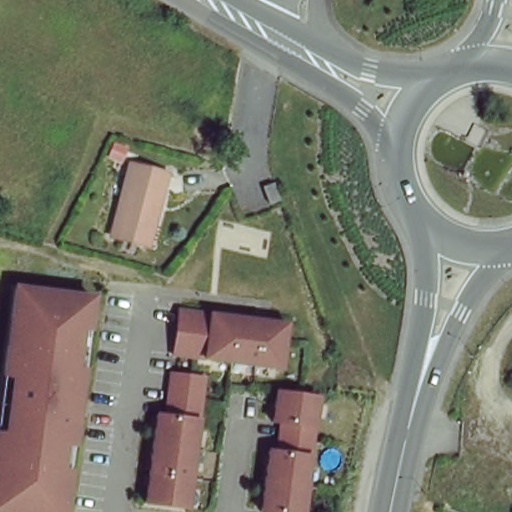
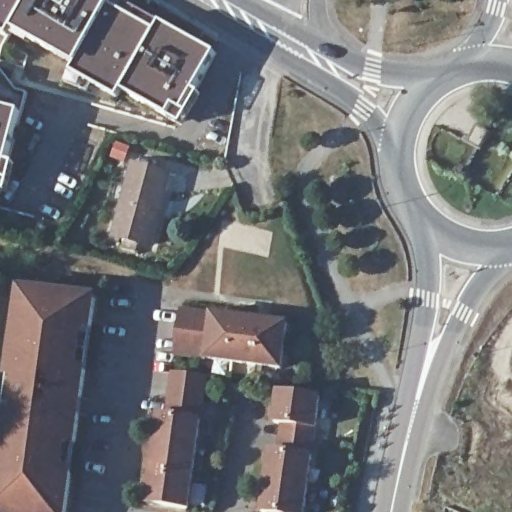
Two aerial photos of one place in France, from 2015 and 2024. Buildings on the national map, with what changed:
new [(156,32),(161,23),(216,54),(183,110),(174,106),(168,115),(124,91),(120,98),(72,71),(76,64),(13,28),(8,35),(0,31),(0,0),(112,0),(108,6),(156,32)]
new [(2,179),(0,179),(0,109),(20,114),(2,179)]
unchanged [(115,232),(135,160),(171,170),(166,186),(159,214),(151,242),(115,232)]
unchanged [(71,512),(4,512),(0,512),(0,435),(19,281),(98,294),(71,512)]
unchanged [(213,308),(289,320),(284,366),(211,356),(176,349),(187,304),(213,308)]
unchanged [(208,373),(201,419),(190,504),(147,497),(160,412),(168,414),(174,368),(208,373)]
unchanged [(324,394),(309,512),(270,512),(270,511),(266,509),(271,449),(279,448),(283,423),(276,421),(279,390),(324,394)]

